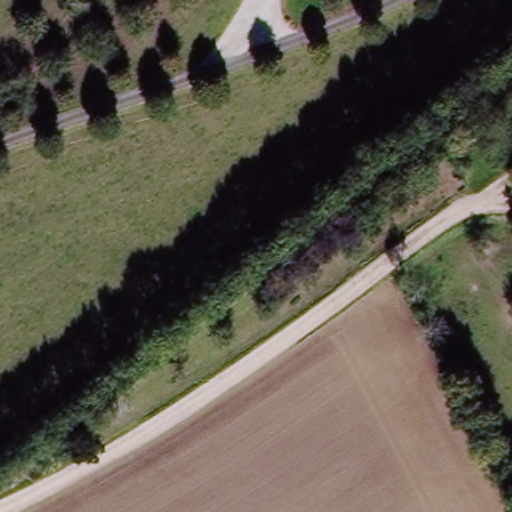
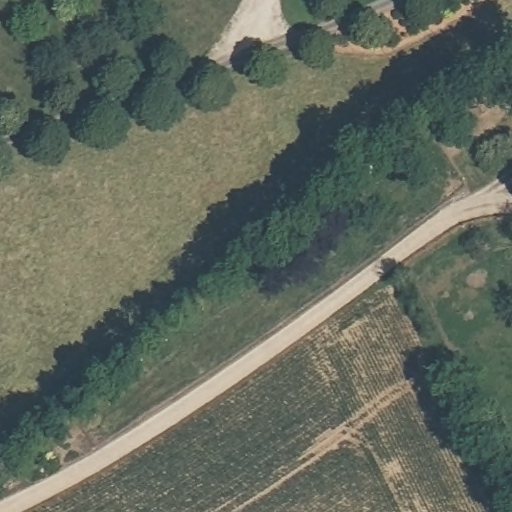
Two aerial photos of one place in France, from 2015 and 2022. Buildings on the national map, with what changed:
[]

